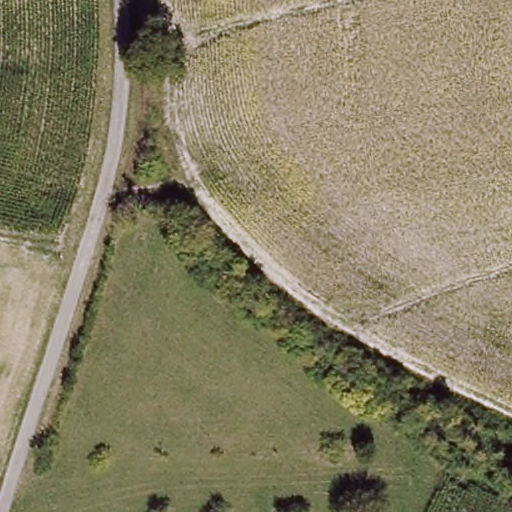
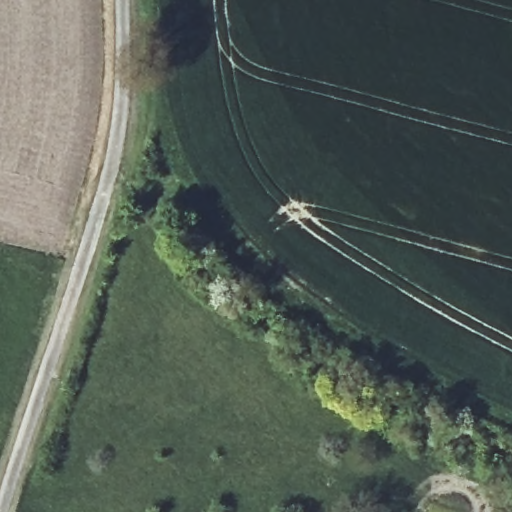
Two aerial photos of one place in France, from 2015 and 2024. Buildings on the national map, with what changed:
[]

